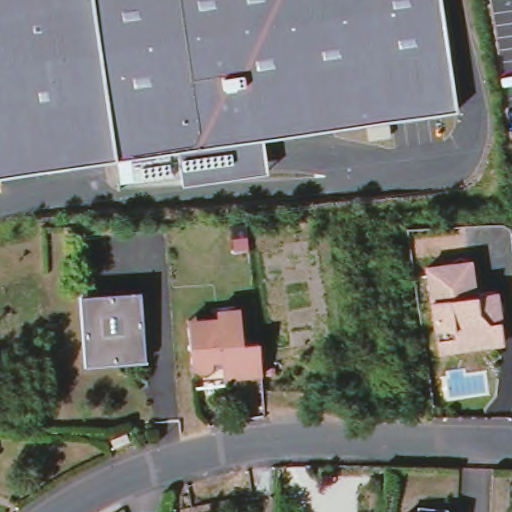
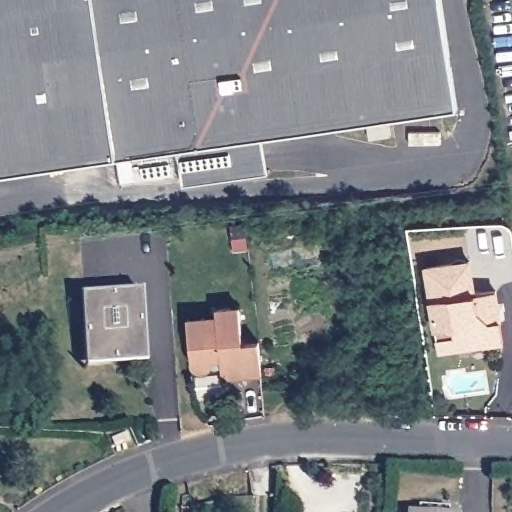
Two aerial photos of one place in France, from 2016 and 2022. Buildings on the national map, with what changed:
unchanged [(457,109),(263,138),(177,150),(86,164),(0,177),(0,0),(441,0),(457,109)]
unchanged [(391,135),(370,138),(368,126),(389,123),(391,135)]
unchanged [(182,185),(177,150),(263,138),(268,172),(182,185)]
unchanged [(454,337),(453,330),(447,328),(436,329),(428,266),(470,261),(475,294),(495,292),(498,313),(493,313),(495,322),(499,321),(502,343),(485,345),(438,351),(437,339),(454,337)]
unchanged [(90,362),(89,354),(107,352),(106,342),(120,341),(115,296),(138,294),(144,357),(90,362)]
unchanged [(120,341),(106,342),(107,352),(89,354),(84,299),(115,296),(120,341)]
unchanged [(215,367),(213,369),(212,370),(209,371),(207,371),(204,371),(202,369),(200,367),(198,365),(197,362),(197,359),(193,326),(193,319),(222,316),(222,309),(245,307),(247,343),(263,342),(267,375),(228,378),(227,365),(216,366),(215,367)]
unchanged [(115,447),(111,439),(126,432),(130,440),(115,447)]

